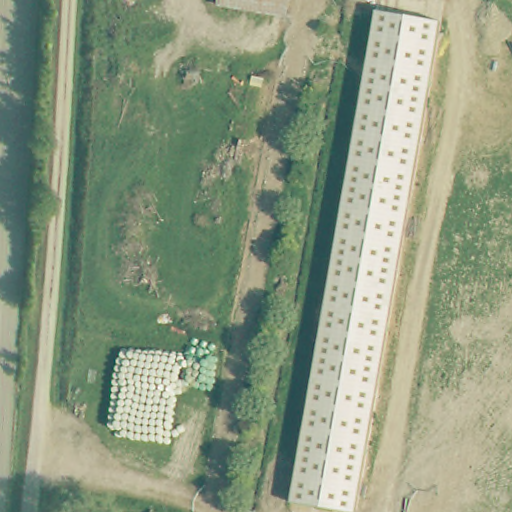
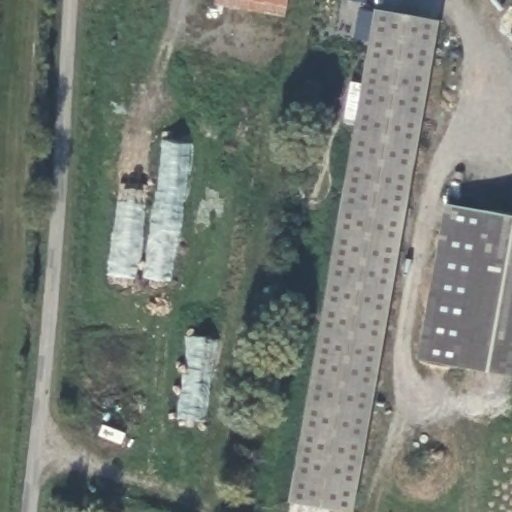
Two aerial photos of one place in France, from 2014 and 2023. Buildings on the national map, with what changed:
unchanged [(212,3),(213,0),(285,0),(282,15),(212,3)]
unchanged [(291,502),(376,10),(439,20),(354,512),(351,512),(291,502)]
new [(444,203),(512,215),(512,376),(417,359),(444,203)]

